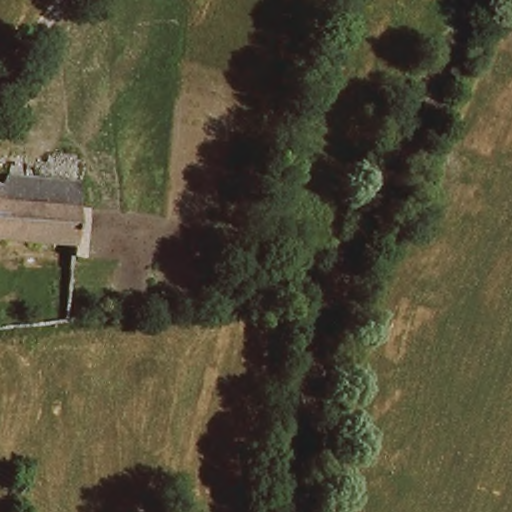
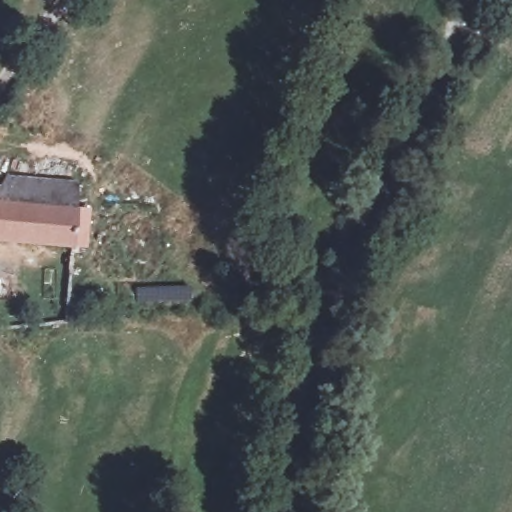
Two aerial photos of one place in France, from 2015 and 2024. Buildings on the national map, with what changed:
unchanged [(14,181),(41,184),(77,187),(74,212),(86,214),(84,230),(82,248),(71,247),(53,246),(7,243),(0,243),(0,207),(1,207),(14,181)]

